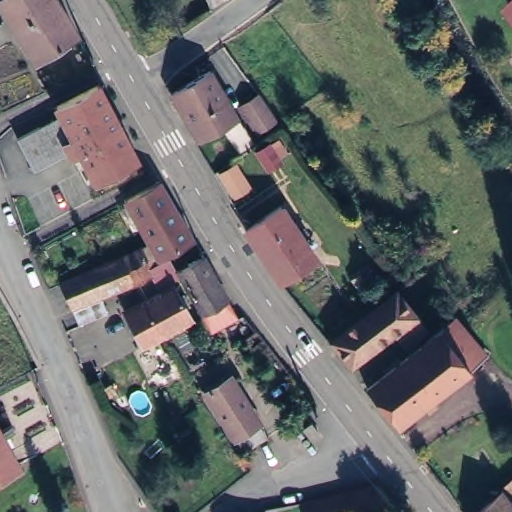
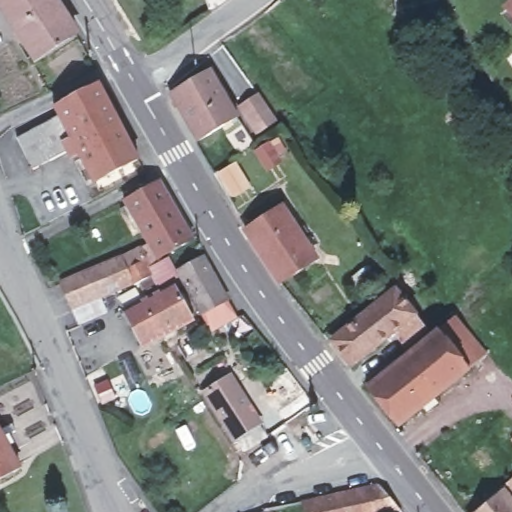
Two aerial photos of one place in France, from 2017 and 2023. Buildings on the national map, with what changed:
unchanged [(31,57),(0,9),(0,0),(52,0),(71,32),(31,57)]
unchanged [(210,63),(237,109),(198,133),(170,86),(171,85),(210,63)]
unchanged [(139,151),(95,174),(80,145),(71,149),(67,144),(32,163),(16,131),(59,110),(55,99),(100,78),(139,151)]
unchanged [(257,88),(273,114),(257,125),(240,98),(257,88)]
unchanged [(188,232),(153,250),(156,254),(144,260),(147,267),(131,277),(129,275),(118,248),(145,237),(120,193),(155,174),(188,232)]
unchanged [(286,202),(321,257),(286,280),(284,280),(249,227),(250,226),(286,202)]
unchanged [(129,275),(97,289),(102,303),(75,315),(68,302),(70,301),(58,275),(118,248),(129,275)]
unchanged [(198,248),(222,292),(232,310),(207,323),(197,306),(173,263),(198,248)]
unchanged [(162,250),(172,267),(155,276),(158,282),(171,275),(188,312),(140,337),(121,302),(142,290),(136,276),(149,270),(147,267),(144,260),(156,254),(162,250)]
unchanged [(395,287),(427,328),(406,345),(393,329),(351,362),(332,337),(395,287)]
unchanged [(486,353),(398,424),(367,385),(453,315),(486,353)]
unchanged [(223,376),(262,433),(238,448),(200,389),(223,376)]
unchanged [(318,440),(310,446),(300,433),(307,426),(318,440)]
unchanged [(20,471),(0,481),(0,432),(20,471)]
unchanged [(512,443),(512,457),(505,449),(512,443)]
unchanged [(503,486),(512,496),(512,512),(474,512),(503,486)]
unchanged [(299,504),(372,487),(393,512),(301,512),(299,504)]
unchanged [(270,512),(259,512),(264,507),(270,512)]

